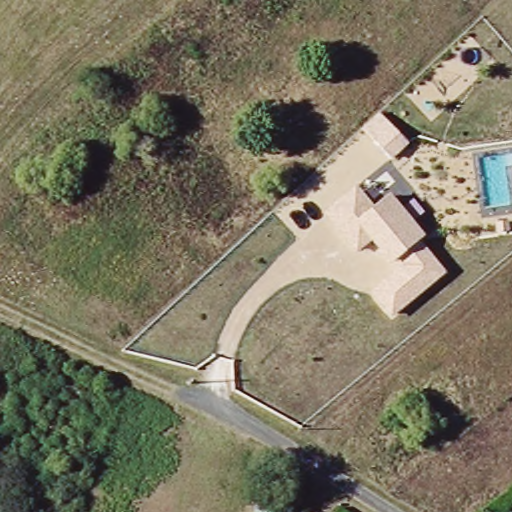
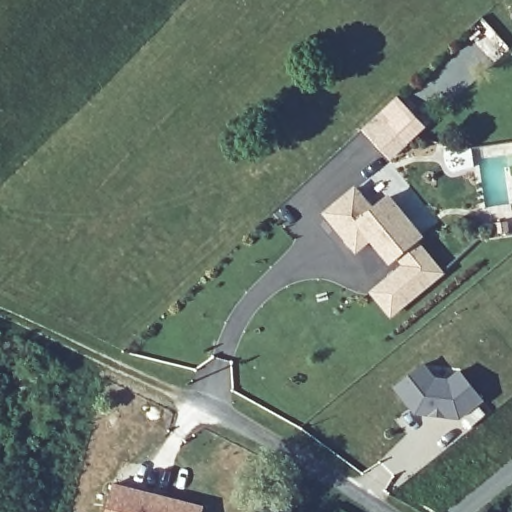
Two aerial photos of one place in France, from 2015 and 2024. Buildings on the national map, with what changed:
unchanged [(408,146),(390,161),(359,129),(378,112),(408,146)]
demolished [(512,192),(512,207),(483,211),(477,155),(506,151),(512,192)]
unchanged [(376,208),(391,196),(425,237),(421,242),(447,274),(391,318),(371,291),(403,265),(398,259),(391,265),(371,240),(354,252),(323,214),(357,186),(376,208)]
new [(485,400),(457,419),(415,415),(393,389),(423,363),(435,377),(448,379),(459,371),(485,400)]
new [(201,512),(105,512),(111,483),(202,505),(201,512)]
unchanged [(276,505),(274,512),(260,512),(263,501),(276,505)]

